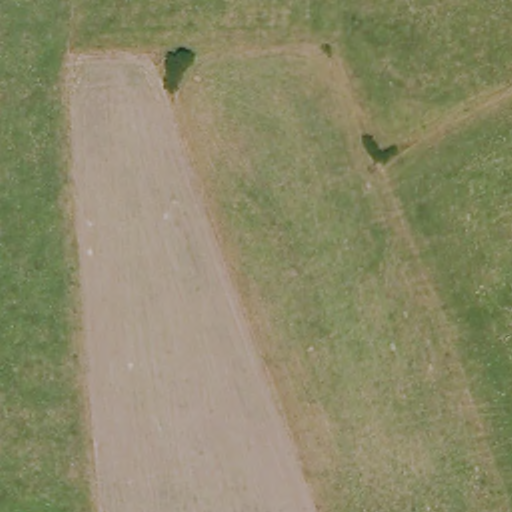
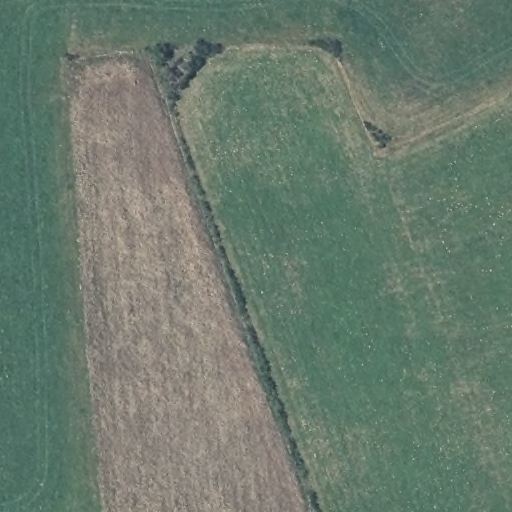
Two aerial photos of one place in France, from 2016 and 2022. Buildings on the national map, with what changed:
[]

